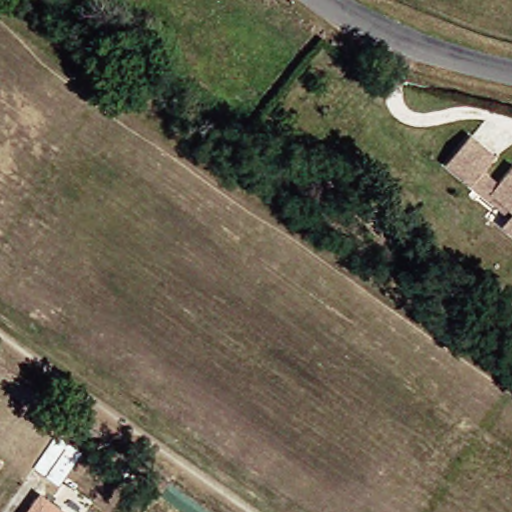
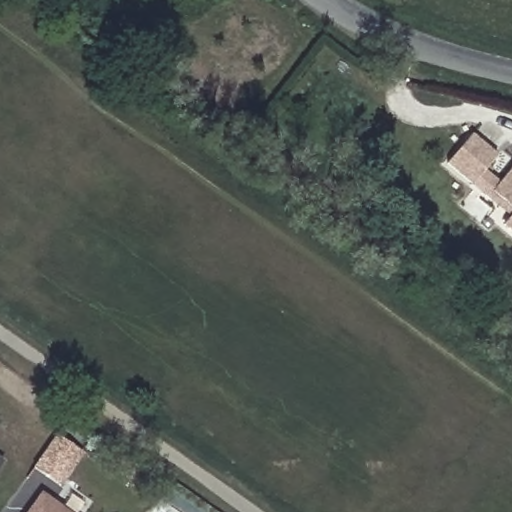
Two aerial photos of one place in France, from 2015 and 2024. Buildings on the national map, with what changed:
unchanged [(473,135),(498,156),(474,185),(449,164),(473,135)]
unchanged [(494,193),(512,170),(512,209),(494,193)]
unchanged [(505,225),(512,217),(512,231),(505,225)]
new [(63,486),(50,477),(38,469),(61,436),(74,445),(86,454),(63,486)]
unchanged [(0,465),(0,457),(4,460),(0,465)]
unchanged [(43,496),(66,512),(31,512),(43,496)]

